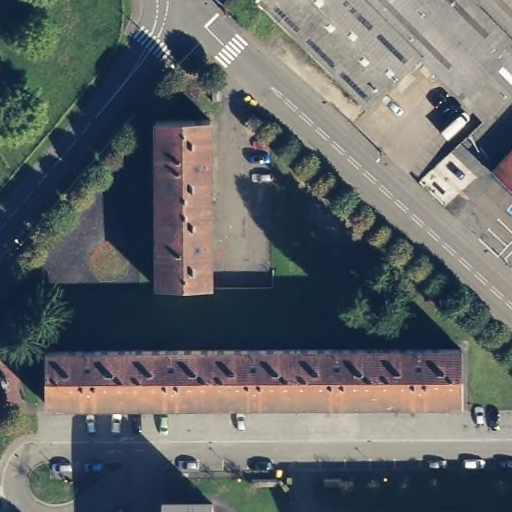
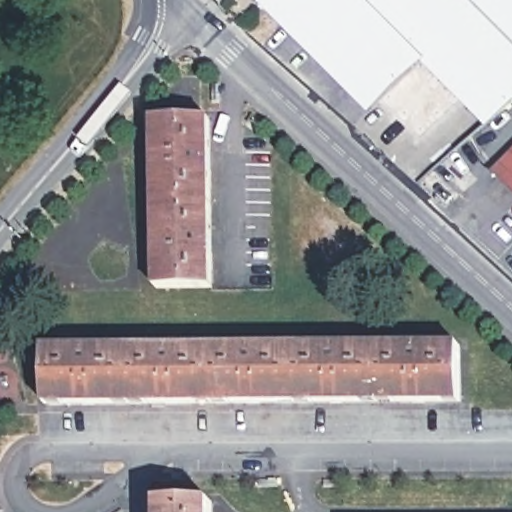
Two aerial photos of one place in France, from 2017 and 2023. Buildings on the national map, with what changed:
unchanged [(512,102),(487,126),(420,60),(367,111),(257,0),(512,0),(512,102)]
unchanged [(154,107),(210,107),(207,270),(153,270),(154,107)]
unchanged [(512,191),(492,172),(512,150),(512,191)]
unchanged [(457,341),(457,395),(40,399),(40,345),(457,341)]
unchanged [(208,512),(160,512),(160,488),(208,488),(208,512)]

